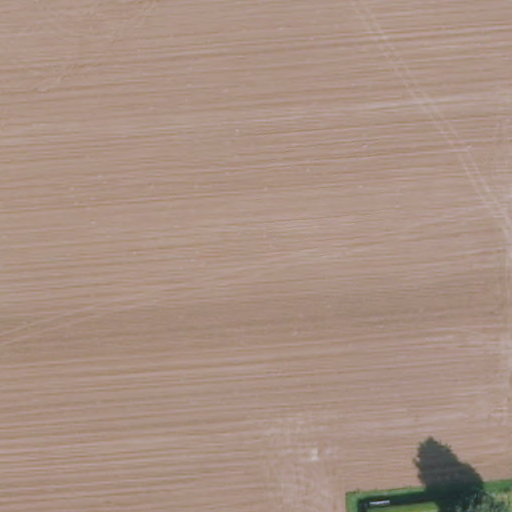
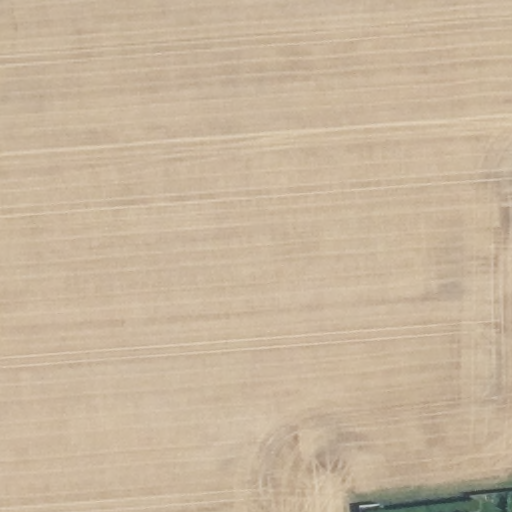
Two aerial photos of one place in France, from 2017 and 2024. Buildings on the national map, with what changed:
[]

